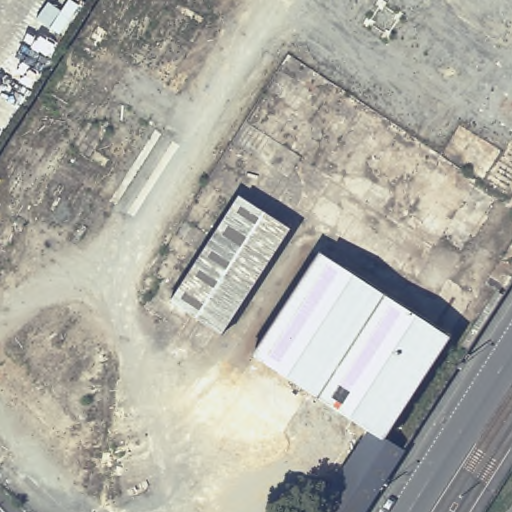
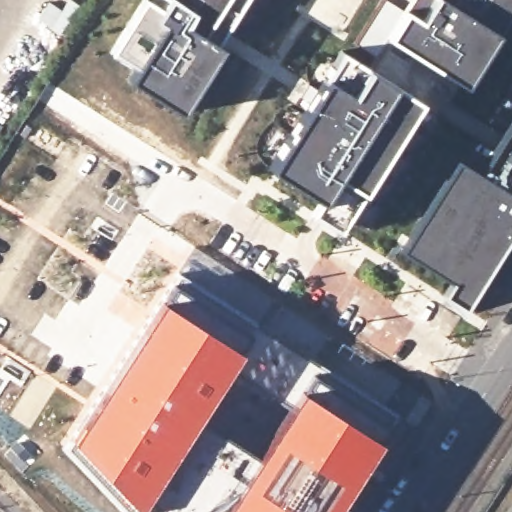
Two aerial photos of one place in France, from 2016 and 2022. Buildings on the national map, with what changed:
new [(223,47),(180,111),(128,79),(137,65),(111,52),(144,0),(145,0),(158,6),(162,0),(244,0),(218,43),(223,47)]
new [(461,314),(443,295),(452,281),(401,251),(458,160),(481,175),(499,146),(439,117),(369,228),(345,213),(337,230),(309,215),(320,202),(268,167),(325,78),(339,50),(365,65),(382,77),(400,46),(386,35),(404,6),(410,8),(413,0),(512,0),(512,11),(463,88),(448,100),(504,131),(512,119),(512,232),(461,314)]
demolished [(241,198),(292,231),(224,336),(173,303),(241,198)]
demolished [(369,433),(252,358),(318,255),(446,337),(382,437),(405,452),(366,512),(318,512),(369,433)]
new [(391,410),(398,414),(394,426),(397,432),(345,512),(160,512),(156,508),(153,512),(129,512),(113,493),(120,488),(90,457),(84,463),(64,439),(163,280),(180,276),(305,354),(308,348),(390,400),(391,410)]

